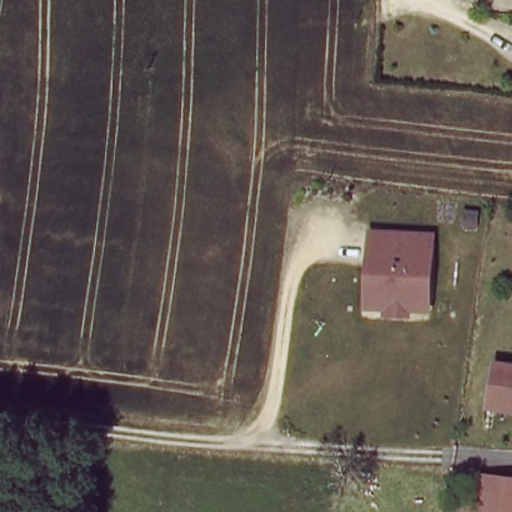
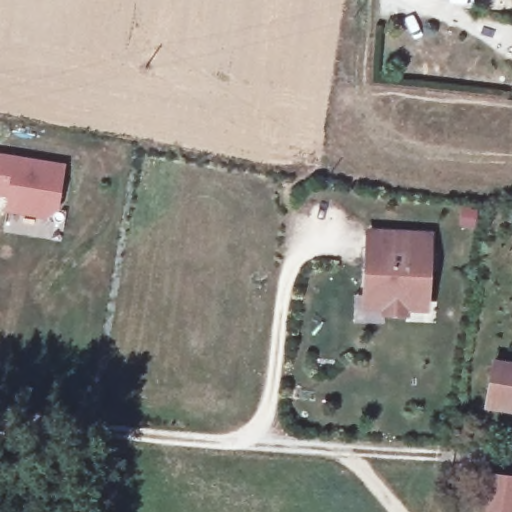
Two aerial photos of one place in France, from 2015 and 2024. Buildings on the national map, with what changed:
new [(4,212),(7,196),(0,195),(0,153),(67,164),(63,180),(58,211),(46,219),(4,212)]
unchanged [(431,233),(426,311),(405,310),(404,317),(379,315),(379,309),(357,307),(359,230),(431,233)]
unchanged [(495,363),(512,366),(512,406),(498,403),(487,401),(489,390),(495,363)]
unchanged [(469,508),(474,477),(488,480),(512,484),(512,512),(487,512),(482,511),(469,508)]

